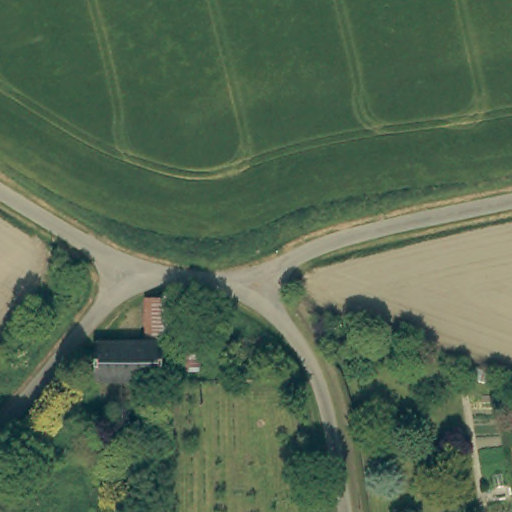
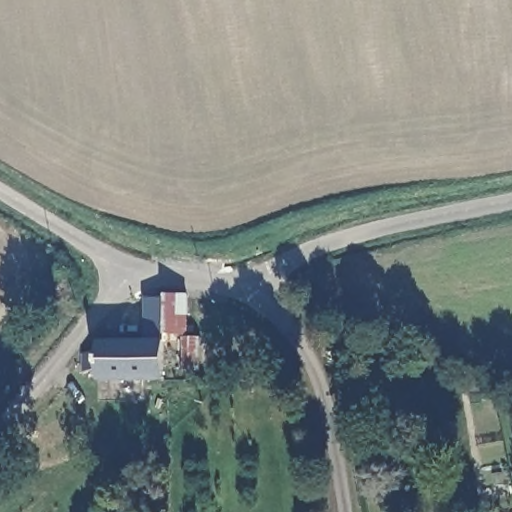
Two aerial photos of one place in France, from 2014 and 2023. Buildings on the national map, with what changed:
unchanged [(194,366),(175,366),(175,333),(159,334),(160,379),(126,379),(91,380),(91,370),(77,370),(77,352),(91,352),(91,340),(138,338),(139,298),(150,295),(157,294),(170,294),(180,295),(180,333),(195,333),(194,366)]

